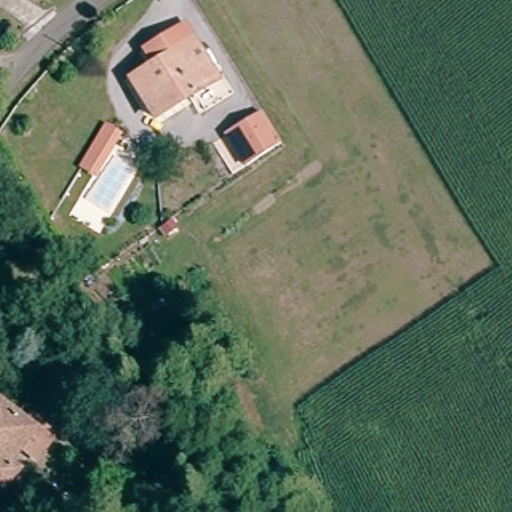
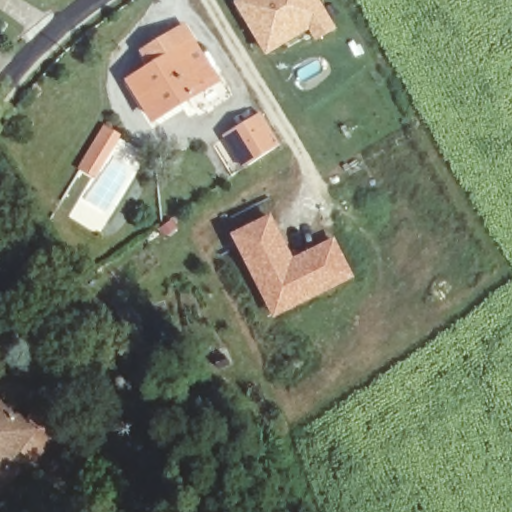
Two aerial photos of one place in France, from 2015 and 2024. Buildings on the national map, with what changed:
new [(234,0),(320,0),(337,29),(314,42),(307,31),(265,56),(231,1),(234,0)]
unchanged [(222,81),(159,128),(133,95),(150,80),(148,76),(140,65),(152,57),(189,34),(222,81)]
unchanged [(281,146),(246,170),(223,139),(256,114),(281,146)]
new [(271,213),(293,257),(335,236),(356,278),(272,320),(228,233),(271,213)]
unchanged [(41,417),(60,434),(37,463),(17,451),(7,468),(17,475),(0,495),(0,408),(28,432),(41,417)]

